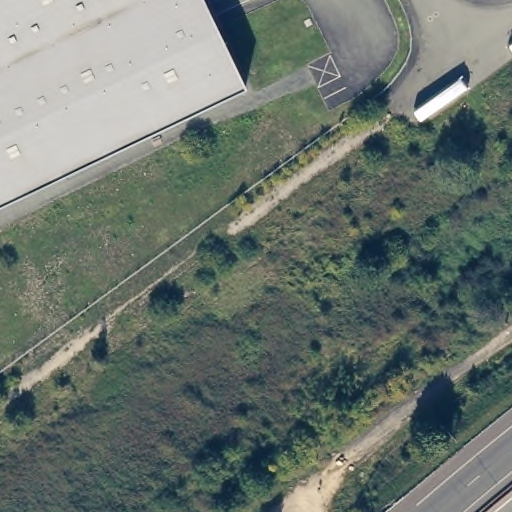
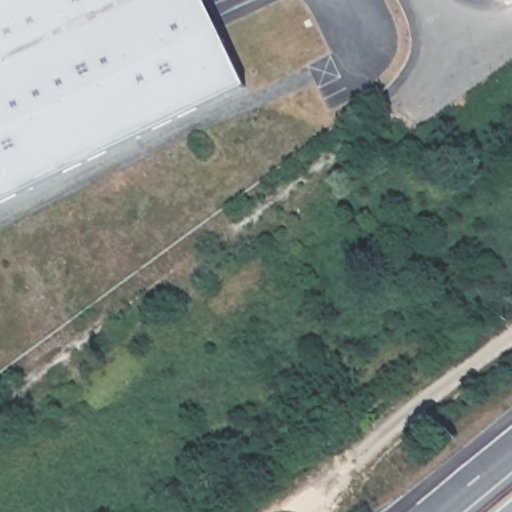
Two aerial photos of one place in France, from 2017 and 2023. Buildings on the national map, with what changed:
unchanged [(0,0),(204,0),(245,87),(0,205),(0,0)]

